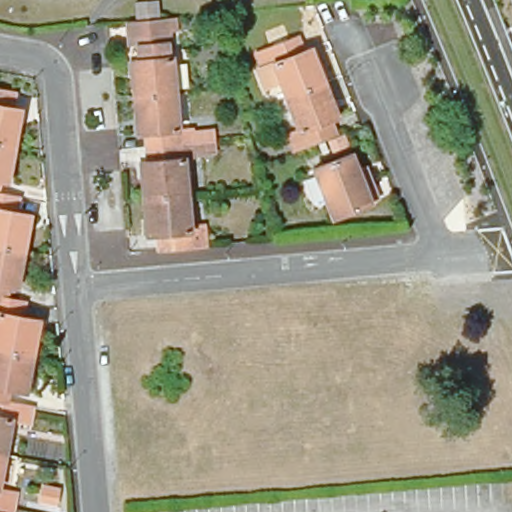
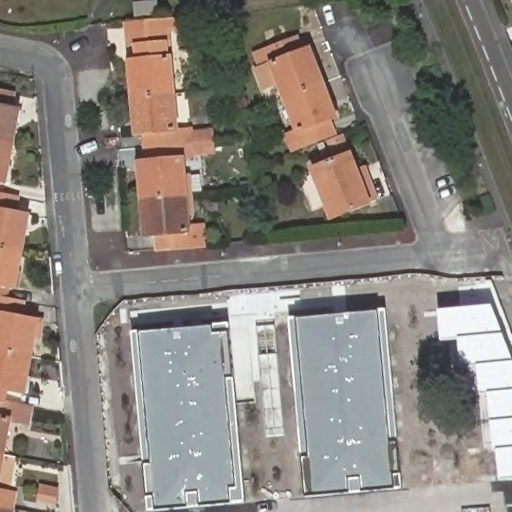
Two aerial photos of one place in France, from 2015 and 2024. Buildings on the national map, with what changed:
unchanged [(130,61),(139,60),(138,46),(129,48),(127,30),(168,26),(172,57),(175,93),(133,98),(130,61)]
unchanged [(285,95),(271,59),(260,63),(255,48),(294,34),(300,48),(309,45),(323,81),(285,95)]
unchanged [(336,113),(327,116),(331,129),(293,143),(288,131),(297,128),(285,95),(323,81),(336,113)]
unchanged [(0,141),(0,89),(19,94),(17,109),(24,110),(17,145),(0,141)]
unchanged [(175,93),(178,127),(191,126),(193,141),(176,143),(148,145),(147,130),(136,131),(133,98),(175,93)]
unchanged [(10,183),(2,181),(0,193),(0,141),(17,145),(10,183)]
unchanged [(176,143),(177,158),(186,157),(187,171),(193,170),(195,190),(143,195),(140,162),(150,161),(148,145),(176,143)]
unchanged [(313,175),(352,160),(358,176),(365,173),(378,204),(332,222),(313,175)]
unchanged [(158,231),(147,232),(143,195),(195,190),(197,212),(192,212),(193,228),(201,227),(203,243),(160,247),(158,231)]
unchanged [(0,243),(0,193),(18,197),(15,212),(26,214),(20,248),(0,243)]
unchanged [(13,286),(5,284),(2,299),(0,299),(0,243),(20,248),(13,286)]
unchanged [(0,349),(0,299),(2,299),(22,303),(19,316),(33,319),(27,354),(0,349)]
new [(512,356),(512,479),(500,481),(496,451),(494,451),(491,421),(489,394),(480,395),(477,367),(462,369),(458,340),(441,341),(438,310),(492,305),(512,356)]
new [(298,318),(378,311),(378,309),(386,309),(403,489),(306,497),(289,318),(298,318)]
new [(132,332),(230,323),(247,503),(149,512),(132,332)]
unchanged [(27,354),(21,390),(6,387),(3,401),(0,400),(0,349),(27,354)]
unchanged [(3,401),(33,407),(30,423),(19,421),(12,457),(0,454),(0,400),(3,401)]
unchanged [(12,457),(5,492),(14,494),(12,508),(0,505),(0,454),(12,457)]

